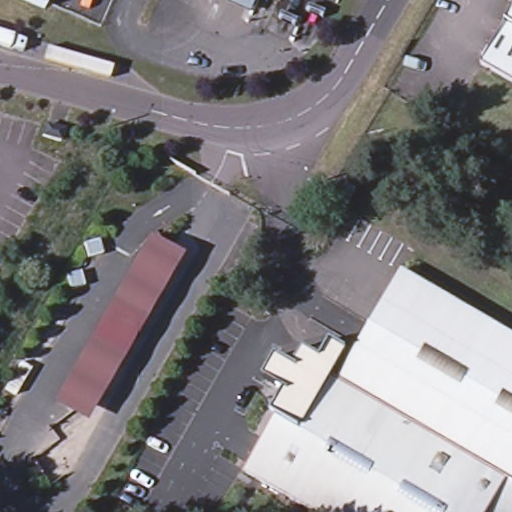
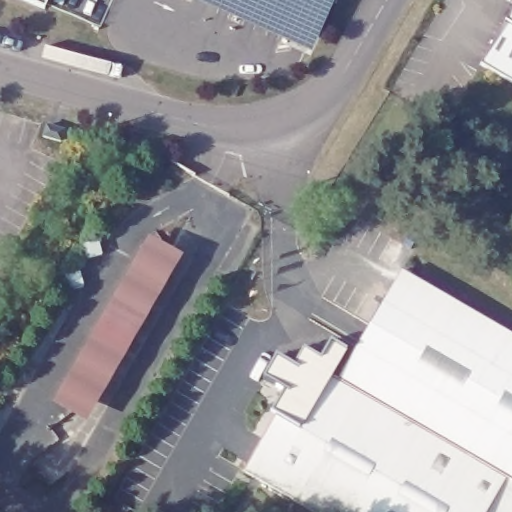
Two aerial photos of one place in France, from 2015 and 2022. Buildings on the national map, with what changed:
unchanged [(40,10),(17,0),(44,0),(40,10)]
new [(313,51),(196,0),(336,0),(313,51)]
unchanged [(510,7),(503,3),(505,0),(512,0),(512,90),(475,68),(510,7)]
unchanged [(61,133),(58,143),(40,138),(43,127),(61,133)]
unchanged [(97,258),(82,262),(79,248),(94,244),(97,258)]
unchanged [(512,340),(512,486),(338,384),(400,275),(512,340)]
unchanged [(76,276),(79,290),(64,294),(61,279),(76,276)]
unchanged [(288,398),(262,383),(275,360),(293,370),(298,361),(303,353),(319,363),(330,345),(346,354),(331,380),(338,384),(512,486),(512,512),(305,512),(243,476),(288,398)]

